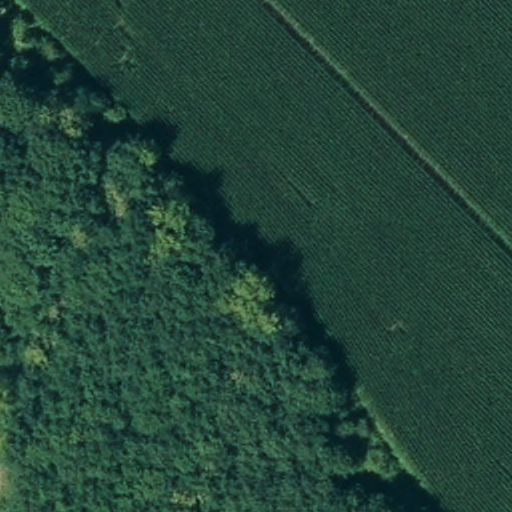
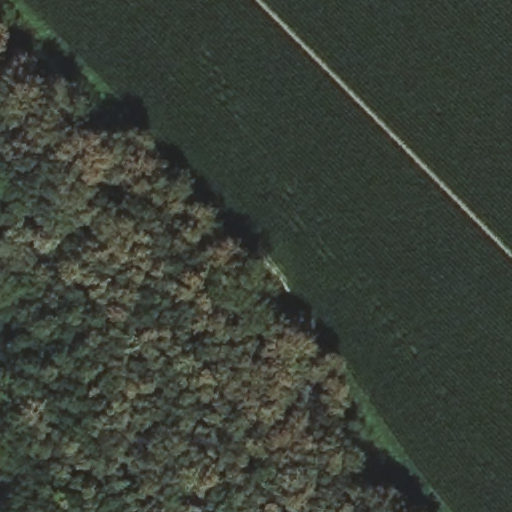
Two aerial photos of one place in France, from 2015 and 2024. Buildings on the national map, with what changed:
unchanged [(0,357),(0,333),(19,333),(20,357),(0,357)]

